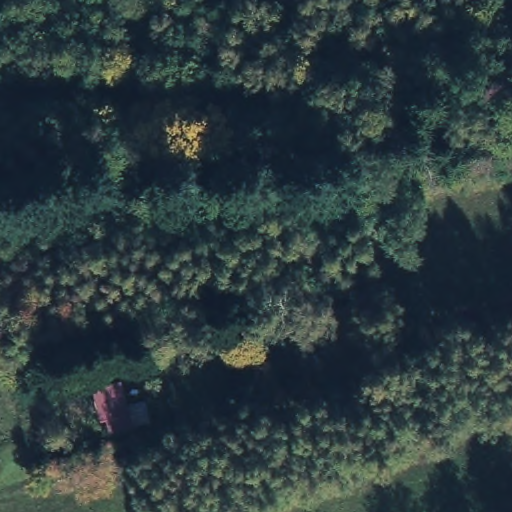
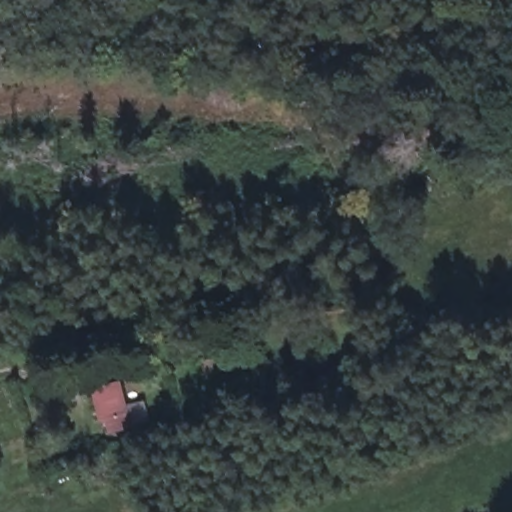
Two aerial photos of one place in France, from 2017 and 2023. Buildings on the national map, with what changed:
unchanged [(118,377),(125,410),(105,414),(98,382),(118,377)]

